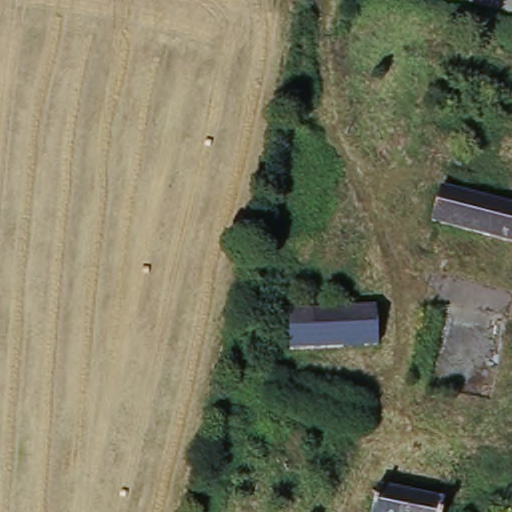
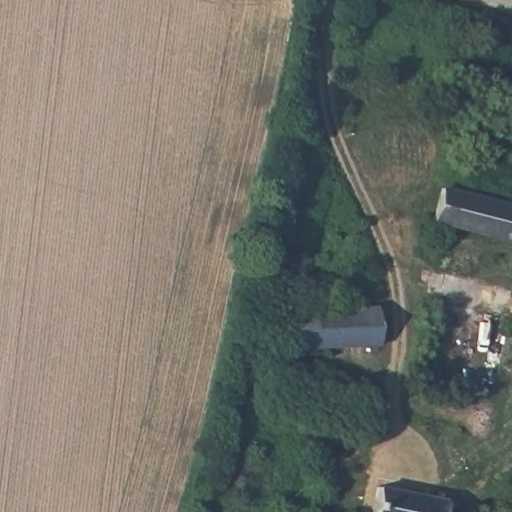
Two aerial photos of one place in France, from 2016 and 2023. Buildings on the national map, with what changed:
unchanged [(444,221),(438,220),(446,185),(512,201),(512,237),(444,221)]
unchanged [(291,339),(289,303),(303,303),(303,291),(333,289),(335,302),(377,301),(376,336),(344,337),(291,339)]
unchanged [(239,436),(218,435),(220,412),(241,414),(239,436)]
unchanged [(445,512),(372,512),(380,482),(449,494),(445,512)]

